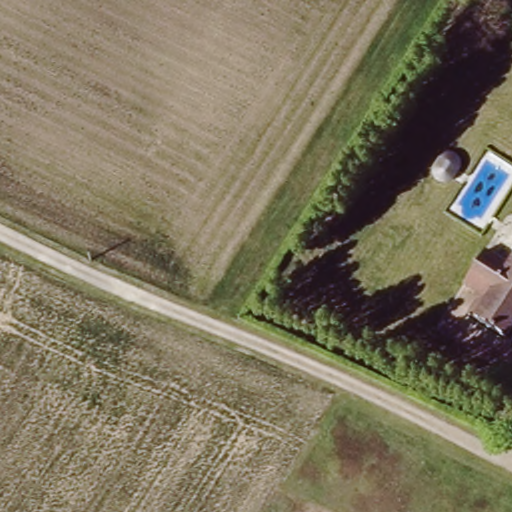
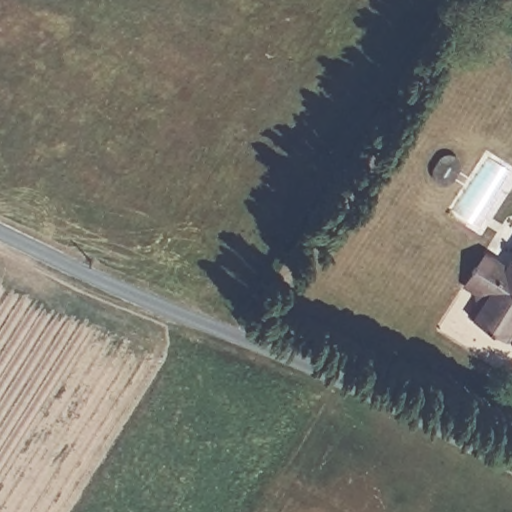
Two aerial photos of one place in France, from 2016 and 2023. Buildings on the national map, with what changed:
unchanged [(485,249),(510,266),(487,301),(464,286),(485,249)]
unchanged [(487,301),(510,266),(512,264),(512,332),(509,337),(479,314),(487,301)]

